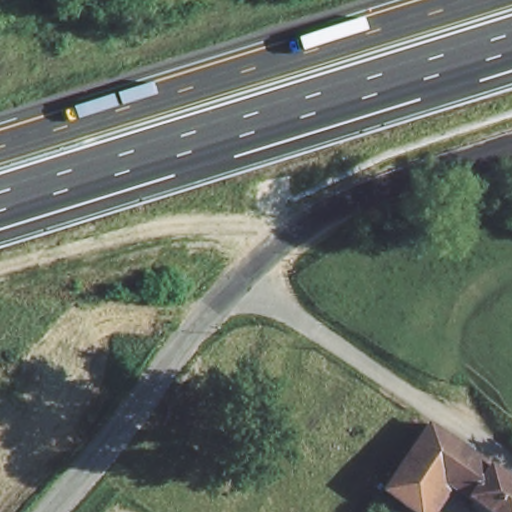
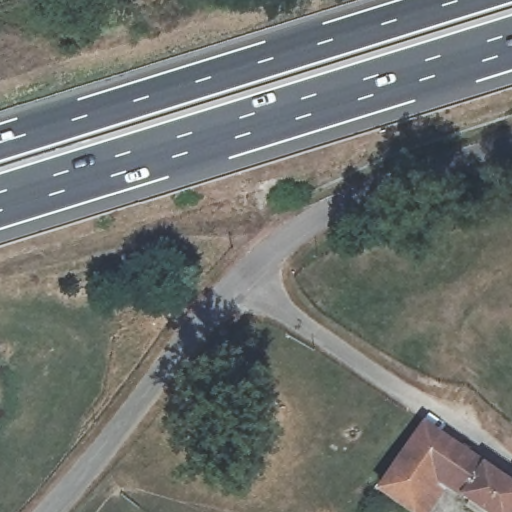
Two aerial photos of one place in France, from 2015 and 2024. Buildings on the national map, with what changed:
unchanged [(512,487),(512,488),(496,512),(482,512),(435,479),(408,512),(406,512),(365,480),(411,416),(512,487)]

